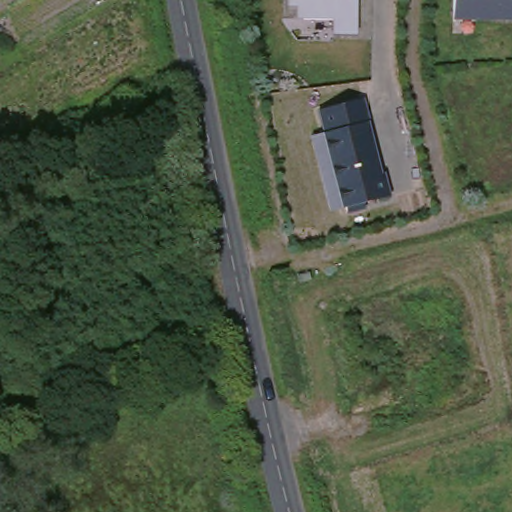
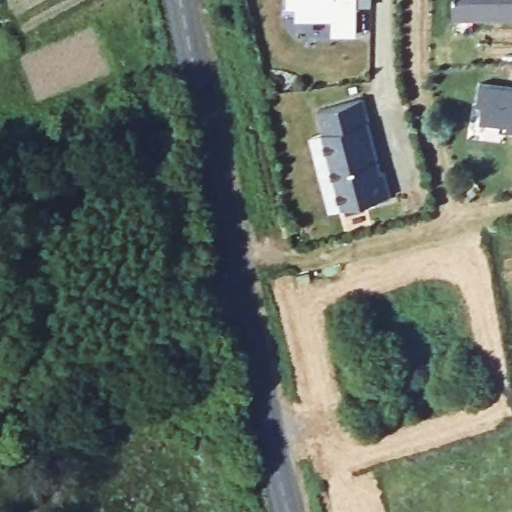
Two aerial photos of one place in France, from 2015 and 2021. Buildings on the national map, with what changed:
unchanged [(333,35),(333,21),(296,20),(296,5),(289,5),(289,0),(357,0),(356,36),(333,35)]
unchanged [(450,0),(512,0),(512,21),(449,20),(450,0)]
new [(483,105),(476,103),(480,82),(512,87),(512,132),(506,130),(506,125),(480,122),(483,105)]
unchanged [(331,212),(311,138),(324,134),(318,109),(359,96),(386,195),(331,212)]

